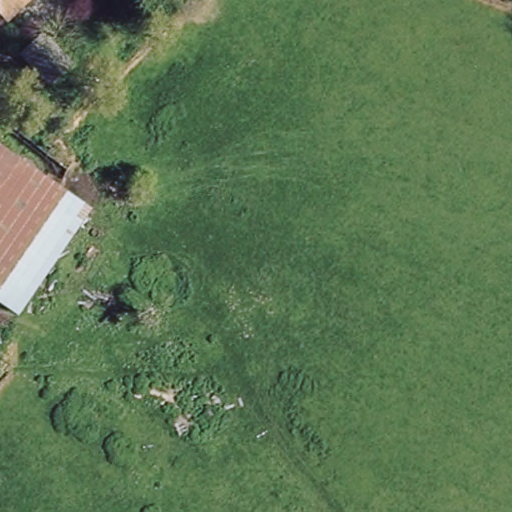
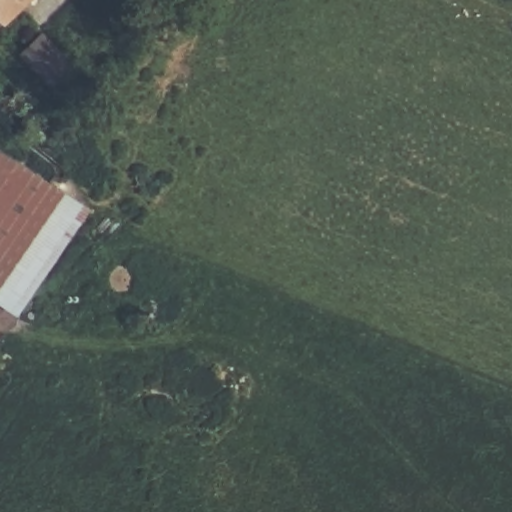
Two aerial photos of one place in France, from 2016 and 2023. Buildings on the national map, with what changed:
unchanged [(0,27),(0,0),(31,0),(0,27)]
unchanged [(41,31),(69,61),(45,87),(15,54),(41,31)]
unchanged [(91,210),(14,320),(0,311),(0,148),(91,210)]

